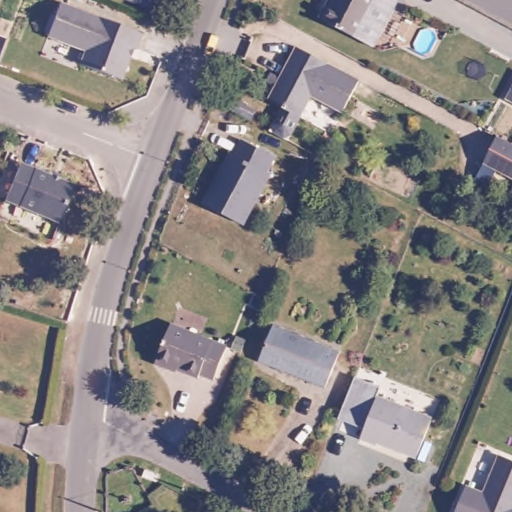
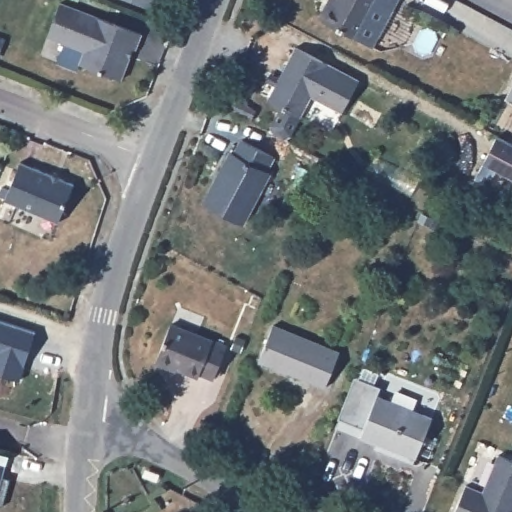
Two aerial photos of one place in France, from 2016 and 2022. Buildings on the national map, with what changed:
unchanged [(134,40),(121,72),(85,58),(90,43),(51,27),(61,0),(71,0),(145,29),(140,42),(134,40)]
unchanged [(133,0),(157,0),(154,8),(133,0)]
unchanged [(352,30),(316,14),(322,0),(386,0),(368,38),(352,30)]
unchanged [(361,80),(347,108),(313,92),(293,136),(274,126),(285,105),(272,99),(297,46),(361,80)]
unchanged [(508,92),(512,84),(512,95),(508,92)]
unchanged [(512,142),(512,176),(485,162),(499,135),(512,142)]
unchanged [(277,157),(269,170),(273,173),(244,224),(204,200),(233,150),(237,152),(245,138),(277,157)]
unchanged [(64,216),(10,195),(25,157),(79,178),(64,216)]
unchanged [(323,385),(258,356),(274,319),(338,347),(323,385)]
new [(0,373),(0,320),(34,332),(20,380),(0,373)]
unchanged [(175,326),(229,350),(217,378),(205,374),(199,377),(176,366),(173,367),(161,361),(175,326)]
unchanged [(380,438),(378,444),(363,436),(382,393),(437,417),(420,456),(380,438)]
new [(0,469),(0,448),(6,450),(0,469)]
unchanged [(458,512),(469,487),(486,493),(504,454),(512,457),(512,512),(458,512)]
new [(0,502),(0,478),(8,480),(0,502)]

